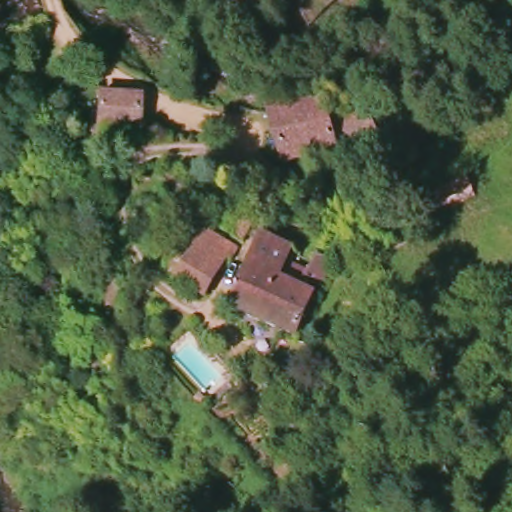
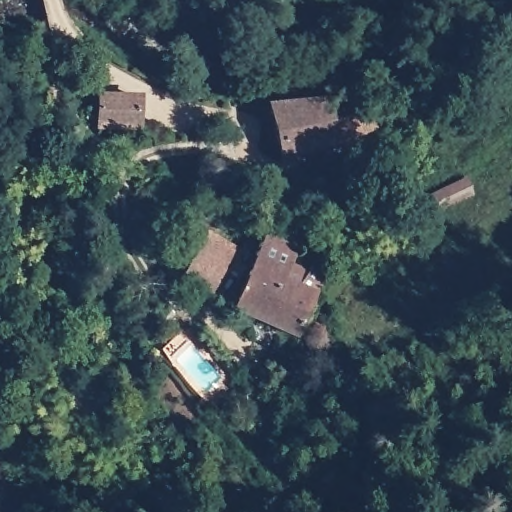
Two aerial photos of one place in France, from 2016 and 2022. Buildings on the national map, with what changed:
unchanged [(133,100),(133,131),(93,134),(91,101),(133,100)]
unchanged [(265,107),(321,103),(330,125),(365,117),(370,136),(277,160),(265,107)]
unchanged [(472,198),(415,224),(407,204),(463,178),(472,198)]
unchanged [(205,239),(230,253),(201,297),(178,283),(205,239)]
unchanged [(226,315),(256,248),(290,255),(286,272),(305,277),(308,273),(316,259),(330,264),(323,277),(320,282),(322,283),(318,289),(291,334),(226,315)]

